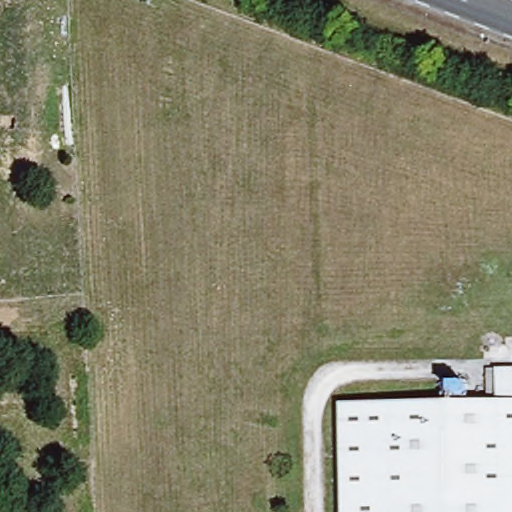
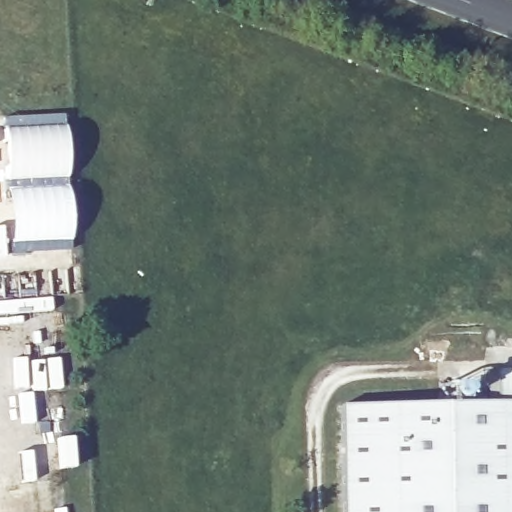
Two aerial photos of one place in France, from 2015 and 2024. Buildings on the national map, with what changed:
new [(64,115),(68,177),(5,180),(2,117),(64,115)]
new [(68,177),(72,241),(10,245),(5,180),(68,177)]
unchanged [(497,402),(497,370),(512,370),(512,512),(343,512),(341,405),(497,402)]

